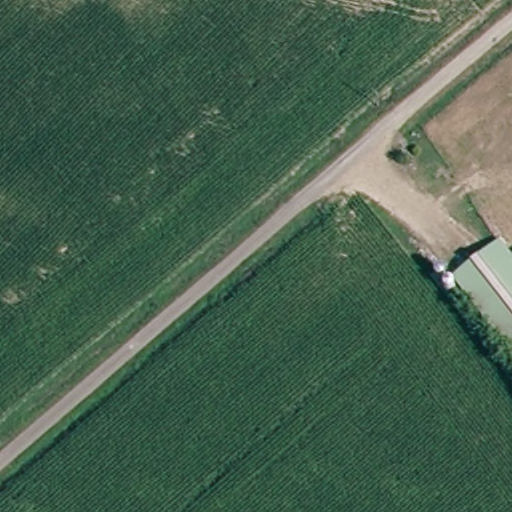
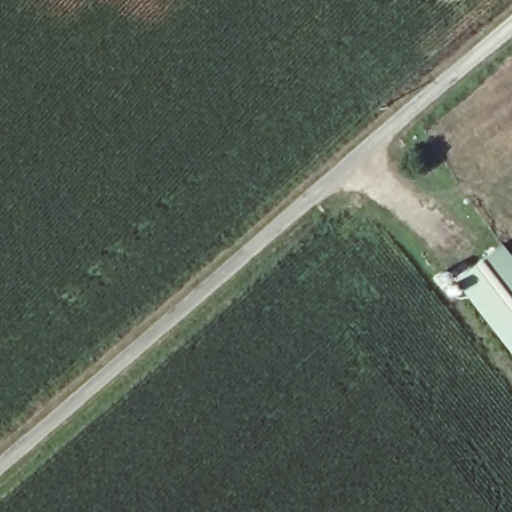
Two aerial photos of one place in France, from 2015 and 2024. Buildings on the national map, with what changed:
unchanged [(512,258),(512,347),(460,280),(503,247),(512,258)]

